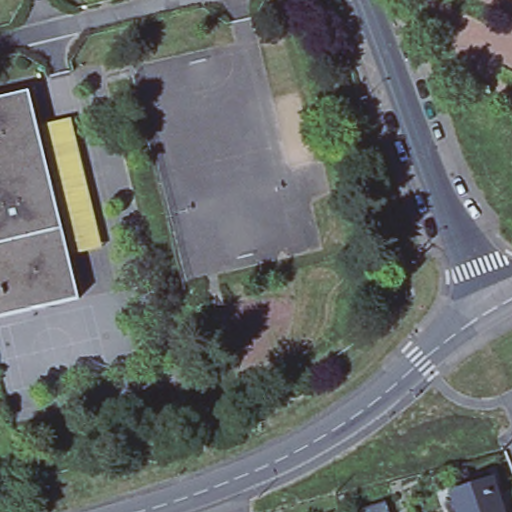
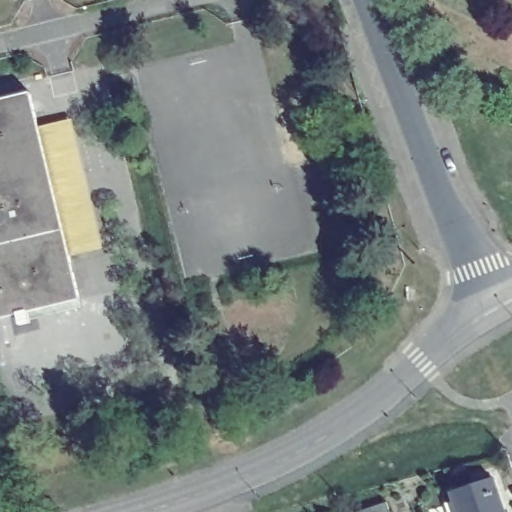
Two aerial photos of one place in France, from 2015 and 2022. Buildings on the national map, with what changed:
unchanged [(32,94),(40,129),(72,255),(83,300),(0,319),(0,102),(32,94)]
unchanged [(71,121),(103,247),(72,255),(40,129),(71,121)]
unchanged [(496,478),(505,512),(462,512),(456,491),(496,478)]
unchanged [(382,504),(386,512),(369,512),(382,504)]

